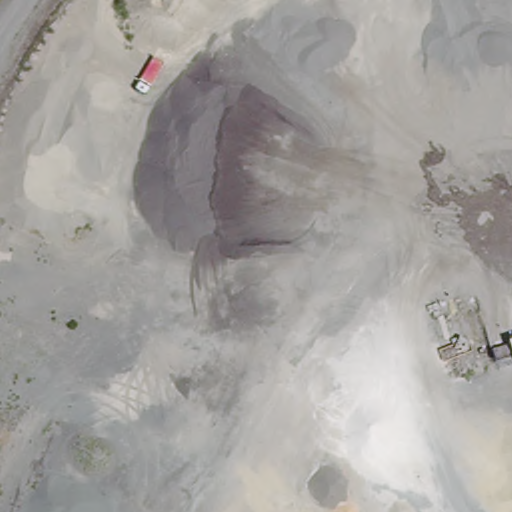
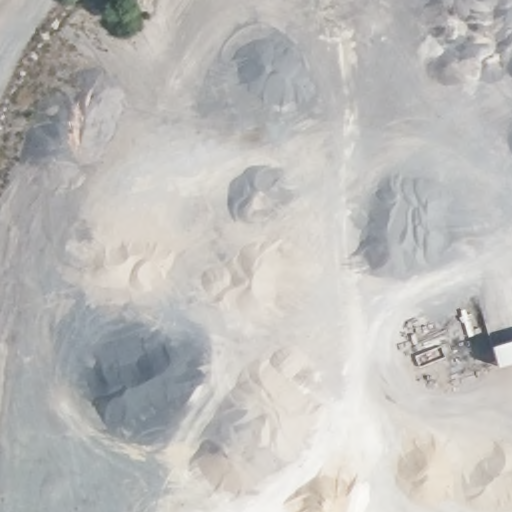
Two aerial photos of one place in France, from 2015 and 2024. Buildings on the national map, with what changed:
unchanged [(510,334),(512,333),(512,340),(510,334)]

